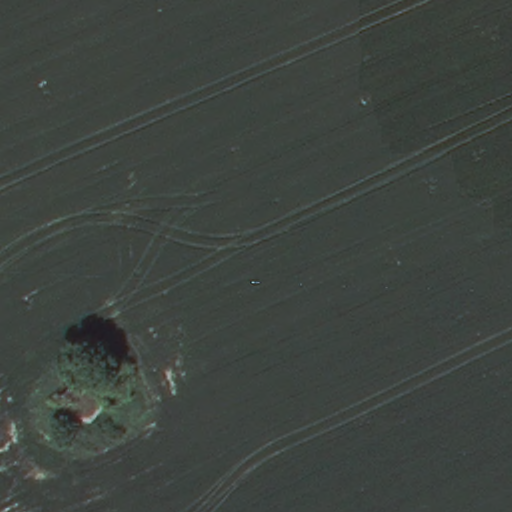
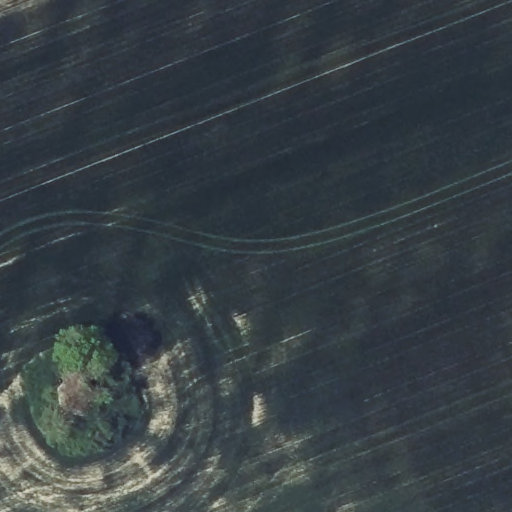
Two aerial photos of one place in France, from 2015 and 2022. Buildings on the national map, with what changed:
unchanged [(79,371),(101,398),(85,417),(63,407),(59,391),(79,371)]

